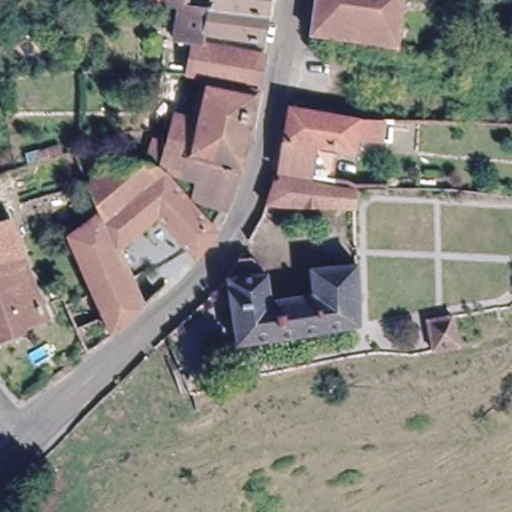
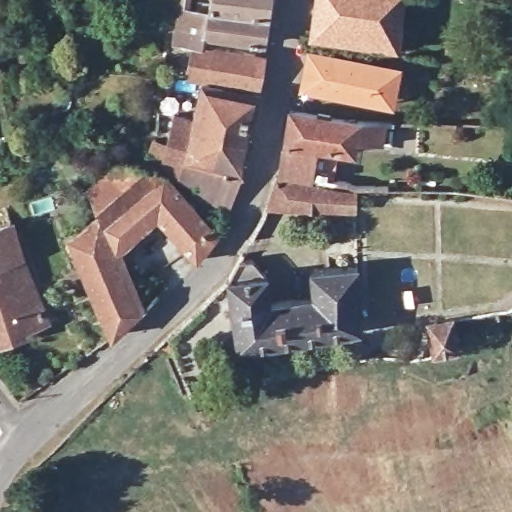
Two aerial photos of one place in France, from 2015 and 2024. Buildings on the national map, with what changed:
unchanged [(265,44),(206,37),(205,44),(192,42),(171,38),(177,9),(161,6),(162,0),(269,0),(265,44)]
unchanged [(397,46),(310,35),(315,0),(403,0),(397,46)]
unchanged [(257,88),(186,75),(192,42),(205,44),(263,55),(257,88)]
new [(402,64),(393,107),(298,89),(306,47),(402,64)]
unchanged [(258,92),(242,173),(189,160),(198,118),(206,81),(257,92),(258,92)]
unchanged [(312,166),(311,172),(278,167),(290,104),(383,120),(380,137),(355,132),(352,148),(316,141),(315,150),(323,151),(320,167),(312,166)]
unchanged [(227,211),(192,189),(196,183),(179,178),(162,160),(174,113),(198,118),(189,160),(242,173),(227,211)]
unchanged [(47,162),(45,152),(65,146),(67,155),(47,162)]
unchanged [(141,309),(111,336),(67,236),(98,214),(87,183),(119,159),(159,167),(217,233),(196,260),(157,218),(116,254),(141,309)]
unchanged [(357,205),(266,201),(276,171),(357,184),(357,205)]
unchanged [(0,225),(0,180),(13,222),(0,225)]
unchanged [(0,261),(0,225),(13,222),(23,254),(0,261)]
unchanged [(0,335),(0,261),(23,254),(47,318),(0,335)]
unchanged [(237,347),(227,278),(239,259),(252,258),(266,275),(270,300),(312,294),(308,269),(352,265),(361,327),(237,347)]
unchanged [(460,347),(431,353),(425,320),(453,314),(460,347)]

